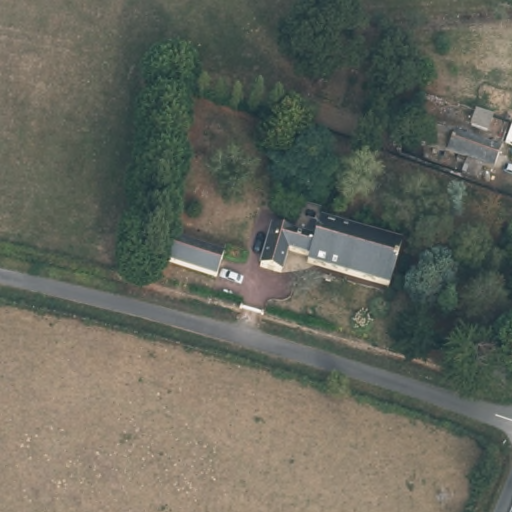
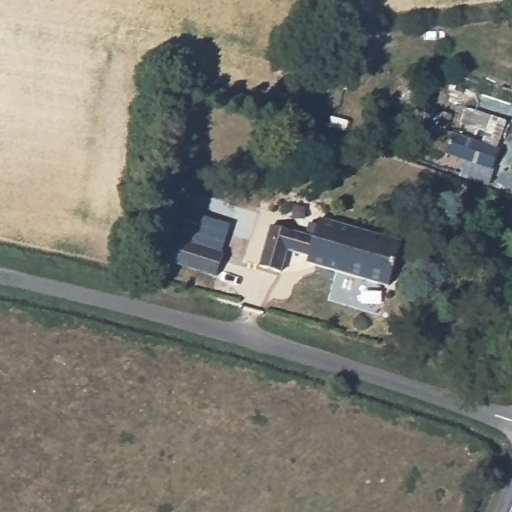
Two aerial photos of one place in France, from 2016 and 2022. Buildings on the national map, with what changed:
unchanged [(488,130),(472,125),(477,108),(493,114),(488,130)]
unchanged [(490,165),(478,162),(472,177),(460,173),(466,157),(445,149),(450,129),(496,147),(490,165)]
unchanged [(388,285),(304,262),(306,253),(288,248),(281,271),(259,265),(270,225),(313,237),(317,218),(400,241),(388,285)]
unchanged [(167,256),(173,236),(222,251),(217,270),(167,256)]

